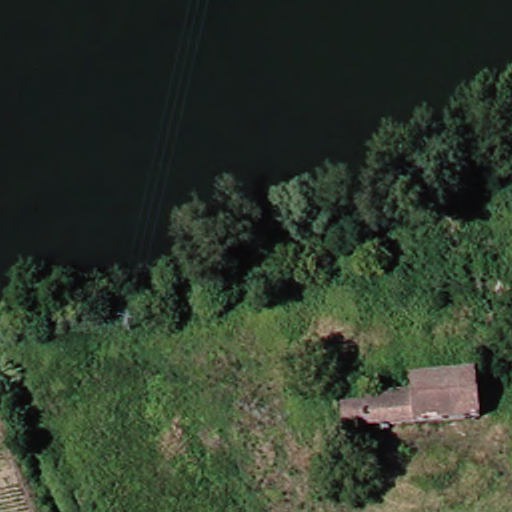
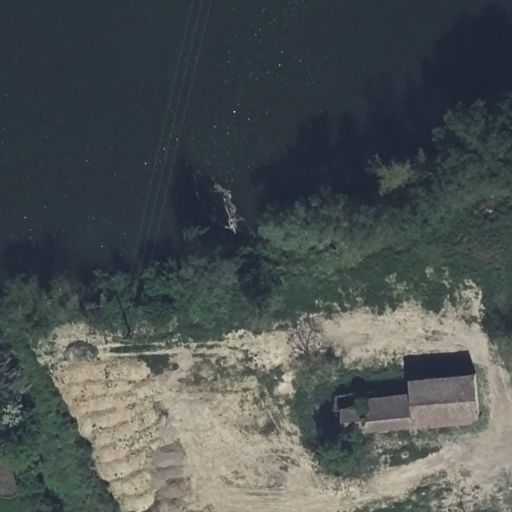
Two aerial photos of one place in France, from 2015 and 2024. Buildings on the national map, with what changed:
unchanged [(510,416),(485,419),(480,377),(506,374),(510,416)]
unchanged [(348,432),(345,410),(339,411),(338,400),(367,396),(368,403),(416,397),(414,385),(480,377),(485,419),(348,432)]

